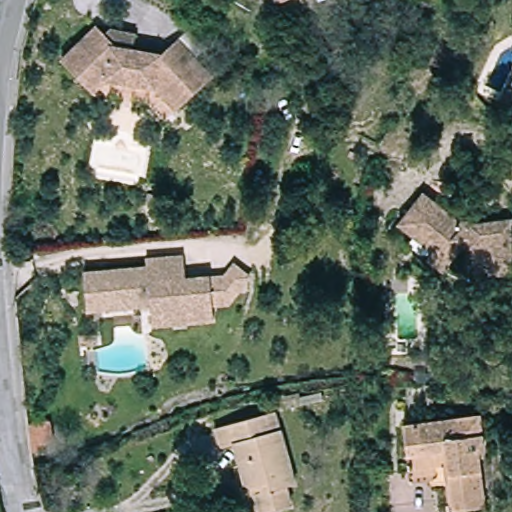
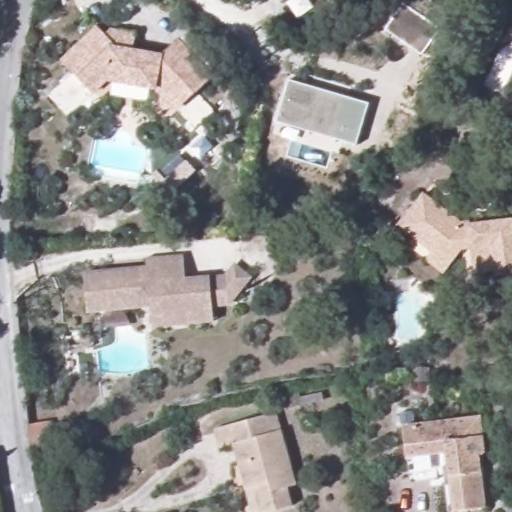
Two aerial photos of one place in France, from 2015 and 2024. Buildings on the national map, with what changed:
unchanged [(276,0),(282,0),(276,2),(276,0)]
unchanged [(328,0),(335,0),(330,4),(328,0)]
unchanged [(102,26),(110,35),(115,29),(141,34),(138,51),(166,56),(185,39),(220,75),(175,120),(147,92),(110,86),(100,95),(66,61),(102,26)]
new [(369,103),(357,146),(277,123),(289,80),(369,103)]
unchanged [(474,225),(512,221),(512,276),(481,278),(477,250),(470,251),(451,276),(434,262),(437,254),(405,227),(430,194),(474,225)]
unchanged [(87,273),(150,267),(150,260),(186,257),(187,279),(213,277),(216,324),(155,329),(153,309),(90,314),(87,273)]
unchanged [(275,413),(295,487),(287,489),(293,508),(279,512),(251,512),(233,446),(217,451),(211,431),(275,413)]
unchanged [(400,428),(479,415),(483,455),(478,456),(483,509),(460,512),(452,454),(405,460),(400,428)]
unchanged [(455,512),(451,512),(445,470),(407,474),(405,460),(452,454),(460,512),(455,512)]

